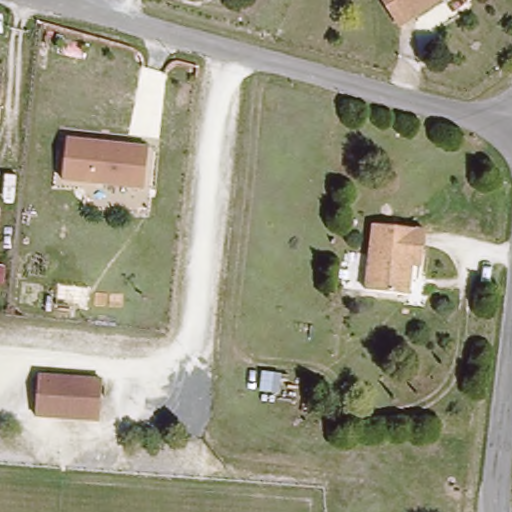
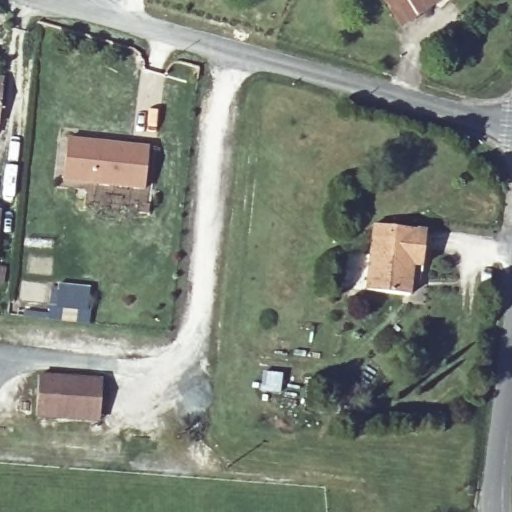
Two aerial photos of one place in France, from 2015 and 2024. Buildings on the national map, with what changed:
unchanged [(400,30),(380,0),(445,0),(400,30)]
unchanged [(67,139),(150,148),(146,190),(64,180),(67,139)]
unchanged [(1,208),(0,214),(0,208),(1,208)]
unchanged [(410,271),(406,299),(366,293),(375,229),(423,236),(421,260),(420,271),(410,271)]
new [(49,301),(53,301),(56,282),(92,285),(90,324),(47,320),(49,301)]
unchanged [(56,420),(36,420),(39,380),(100,384),(98,413),(97,423),(56,420)]
unchanged [(278,401),(260,400),(262,382),(279,383),(278,401)]

